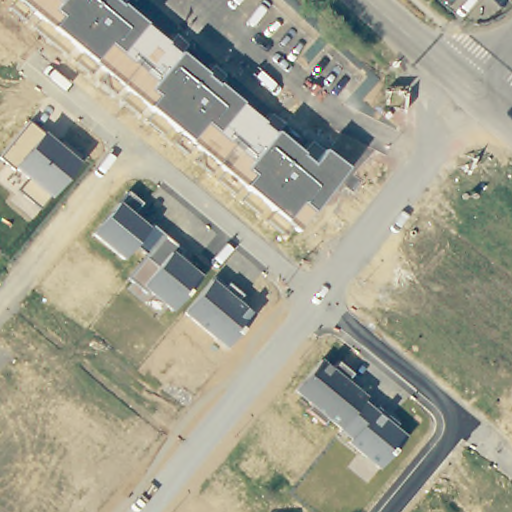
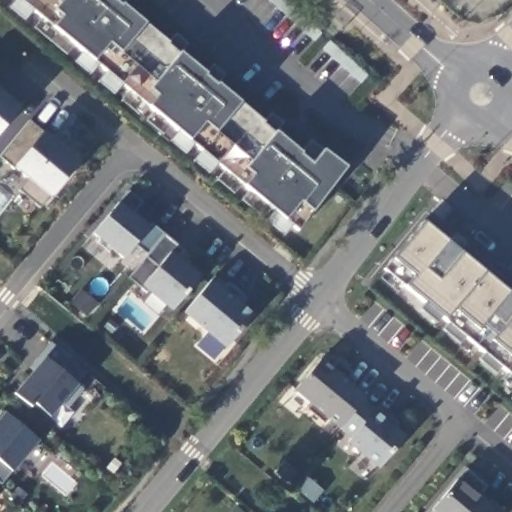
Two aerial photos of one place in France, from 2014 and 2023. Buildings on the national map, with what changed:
unchanged [(301,153),(311,140),(325,150),(345,167),(312,212),(300,230),(290,223),(283,235),(265,221),(273,210),(266,204),(258,214),(241,200),(249,190),(241,184),(235,194),(217,178),(225,170),(219,165),(211,175),(194,160),(201,151),(194,145),(187,154),(171,140),(178,132),(170,125),(163,134),(147,120),(155,112),(147,106),(146,104),(139,114),(123,100),(130,92),(121,84),(113,93),(99,81),(105,72),(97,65),(91,74),(75,61),(83,52),(73,44),(67,53),(34,26),(40,18),(32,11),(25,20),(10,7),(16,0),(126,0),(124,3),(145,22),(167,42),(175,33),(187,44),(180,53),(205,73),(212,65),(225,76),(219,84),(240,102),(262,120),(270,112),(285,123),(275,131),(301,153)]
new [(325,35),(317,43),(270,0),(285,0),(325,35)]
new [(332,43),(370,78),(363,85),(325,50),(332,43)]
new [(0,133),(0,90),(21,107),(0,133)]
unchanged [(81,164),(51,197),(47,195),(39,206),(20,190),(29,178),(17,168),(0,155),(30,122),(43,133),(81,164)]
unchanged [(143,202),(134,214),(134,215),(149,227),(152,223),(184,249),(179,256),(202,276),(172,311),(145,287),(130,275),(146,254),(135,246),(124,258),(91,233),(117,202),(129,192),(143,202)]
new [(512,388),(501,380),(506,372),(500,367),(495,373),(478,358),(483,352),(465,336),(460,342),(442,330),(448,323),(443,319),(440,317),(435,322),(418,309),(423,302),(403,287),(400,284),(396,291),(380,278),(385,271),(383,269),(392,259),(423,222),(512,296),(512,388)]
unchanged [(224,288),(228,282),(244,294),(240,301),(255,314),(226,348),(184,312),(213,279),(224,288)]
new [(32,370),(29,367),(50,341),(86,371),(76,382),(79,384),(51,418),(35,405),(32,407),(13,393),(32,370)]
unchanged [(321,360),(331,368),(337,361),(353,374),(347,382),(366,398),(363,401),(375,411),(379,407),(397,422),(394,427),(405,437),(377,469),(344,442),(348,436),(328,418),(323,424),(305,409),(308,404),(293,391),(321,360)]
new [(0,484),(0,414),(35,443),(0,484)]
new [(483,484),(478,490),(503,512),(431,512),(466,470),(483,484)]

